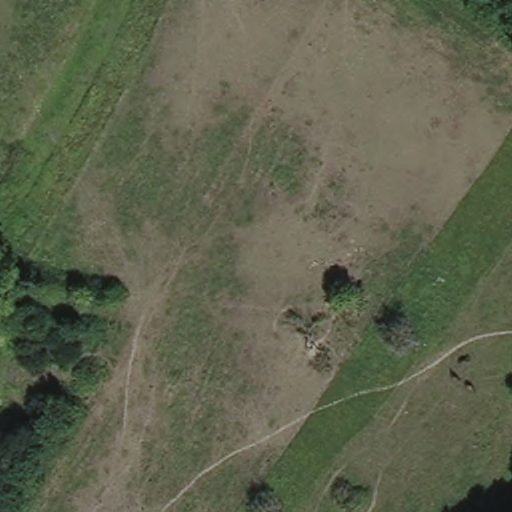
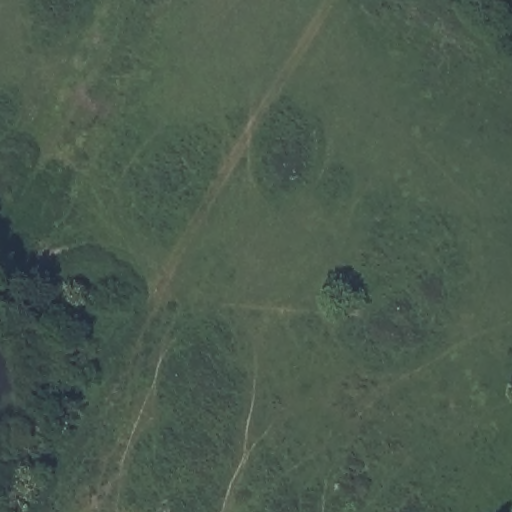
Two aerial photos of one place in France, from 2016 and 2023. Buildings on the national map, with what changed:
[]

